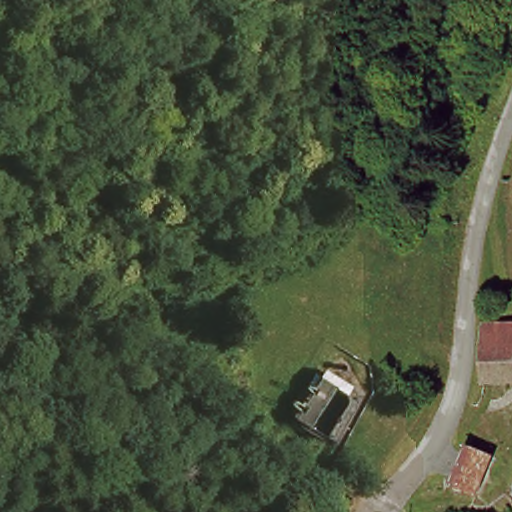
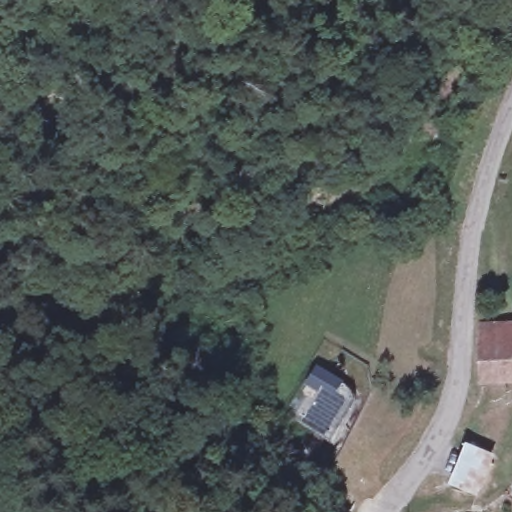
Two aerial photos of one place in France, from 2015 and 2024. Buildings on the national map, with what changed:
unchanged [(512,326),(512,379),(471,379),(476,326),(512,326)]
unchanged [(332,441),(288,424),(321,369),(353,384),(332,441)]
unchanged [(486,462),(469,494),(453,486),(466,455),(486,462)]

